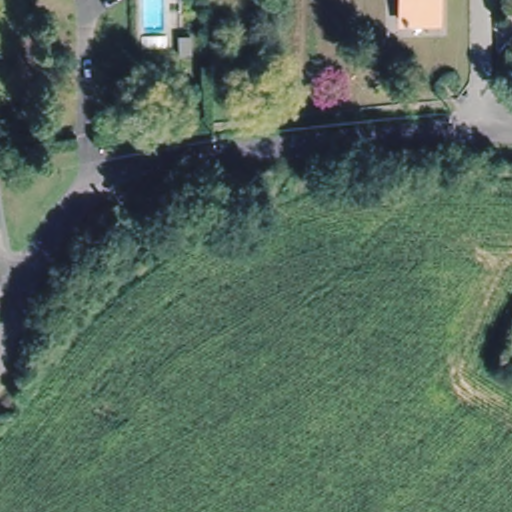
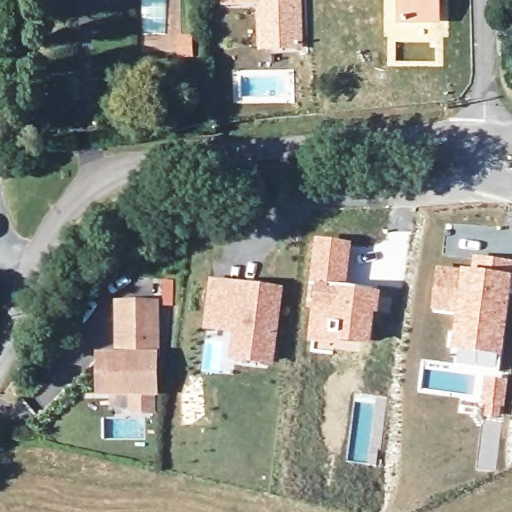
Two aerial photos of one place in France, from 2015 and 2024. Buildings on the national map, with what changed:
new [(257,51),(255,8),(219,9),(218,0),(302,0),(303,49),(257,51)]
unchanged [(402,23),(402,0),(438,0),(438,23),(402,23)]
new [(315,240),(352,243),(348,287),(311,284),(315,240)]
new [(481,259),(490,260),(512,263),(512,288),(504,353),(459,347),(463,310),(439,307),(443,270),(478,274),(481,259)]
new [(242,328),(233,327),(211,324),(214,303),(217,283),(247,287),(282,291),(273,360),(271,359),(241,356),(239,355),(242,328)]
new [(311,284),(348,287),(382,291),(372,347),(309,344),(311,284)]
new [(158,300),(160,397),(156,398),(157,415),(131,415),(130,398),(97,398),(97,354),(115,353),(114,301),(158,300)]
demolished [(512,333),(512,377),(497,371),(512,333)]

